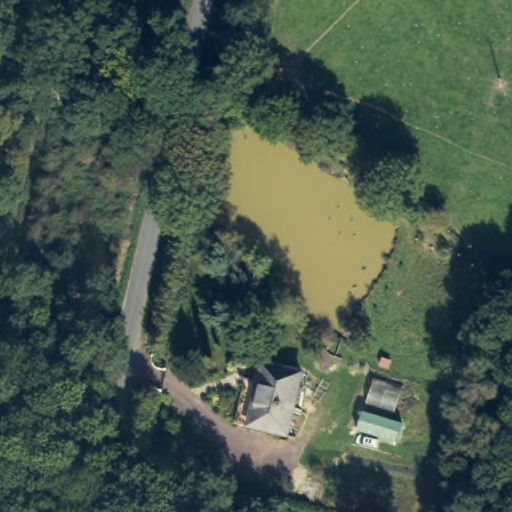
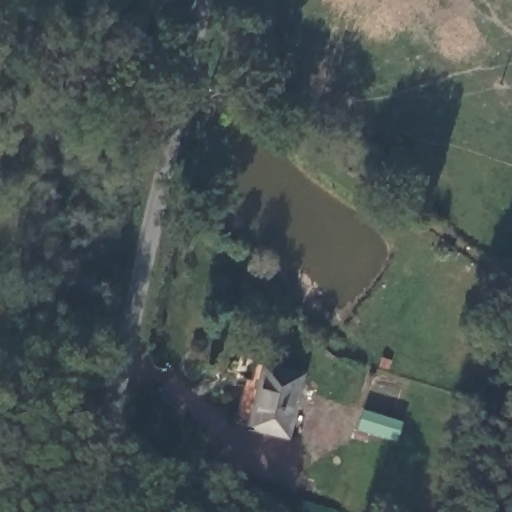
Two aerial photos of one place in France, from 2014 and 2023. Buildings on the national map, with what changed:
unchanged [(295,433),(243,422),(252,378),(259,379),(263,363),(308,372),(295,433)]

